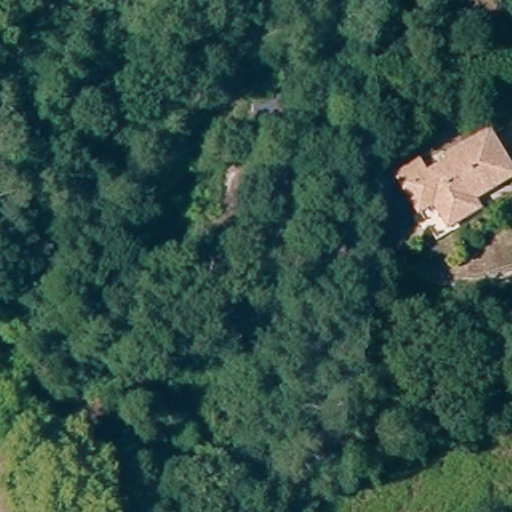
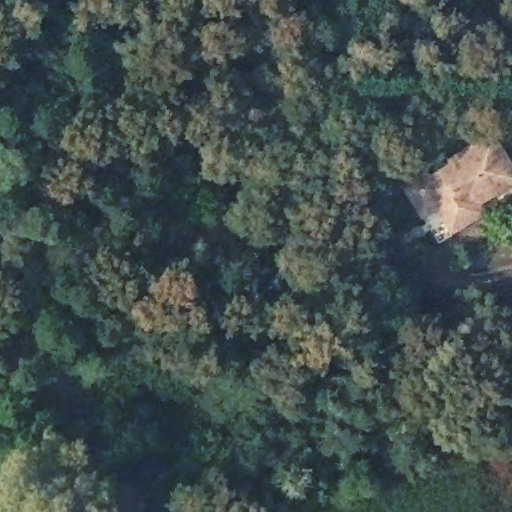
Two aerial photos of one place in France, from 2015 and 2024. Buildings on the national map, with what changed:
unchanged [(407,165),(431,152),(441,168),(462,157),(456,149),(497,127),(512,153),(512,175),(482,192),(490,204),(461,220),(448,195),(430,206),(416,182),(407,165)]

